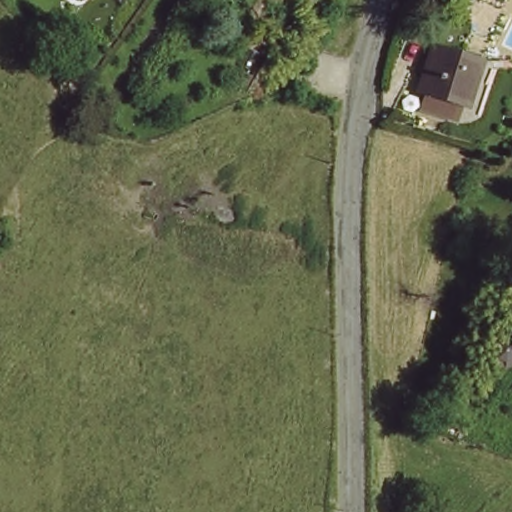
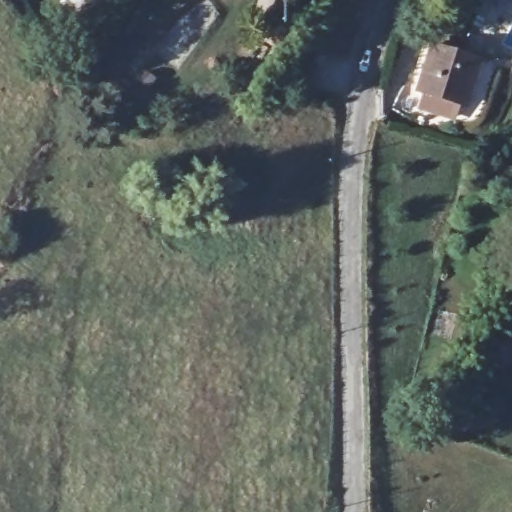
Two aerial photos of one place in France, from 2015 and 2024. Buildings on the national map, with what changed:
unchanged [(466,107),(419,96),(431,54),(477,64),(466,107)]
unchanged [(512,338),(512,366),(508,369),(504,367),(491,363),(487,355),(493,340),(500,336),(512,338)]

